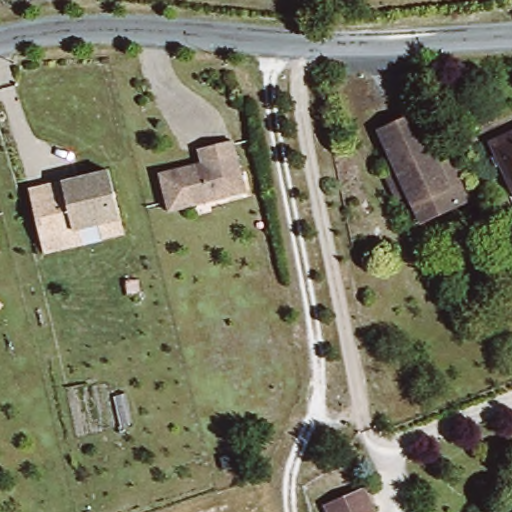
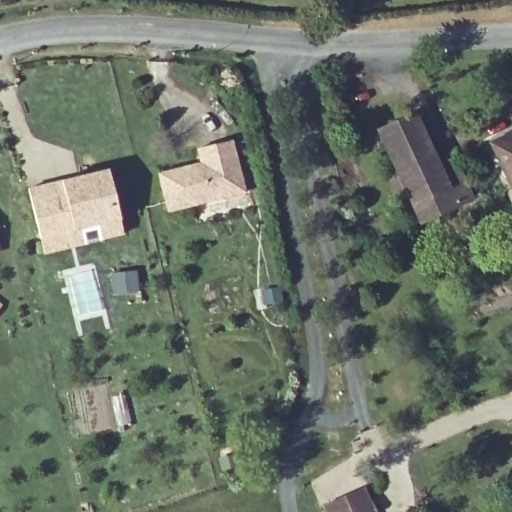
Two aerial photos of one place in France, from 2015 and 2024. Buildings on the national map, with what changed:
unchanged [(439,164),(458,156),(476,198),(421,221),(383,131),(419,116),(439,164)]
unchanged [(512,129),(512,181),(494,137),(512,129)]
unchanged [(223,193),(163,207),(154,168),(195,159),(192,145),(210,142),(230,138),(239,177),(241,189),(223,193)]
unchanged [(33,236),(20,187),(55,178),(68,175),(100,167),(116,231),(95,236),(36,251),(33,236)]
unchanged [(359,496),(365,512),(325,512),(324,509),(359,496)]

